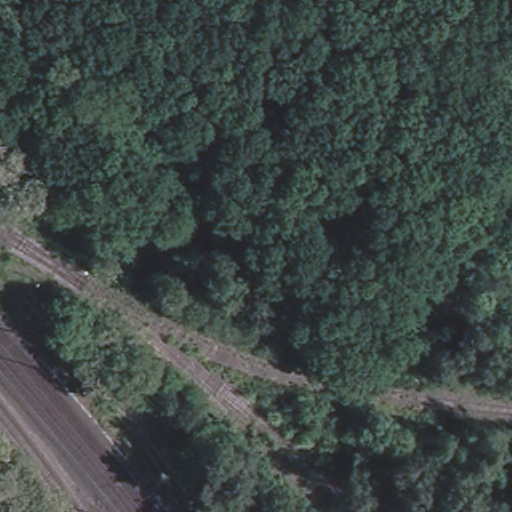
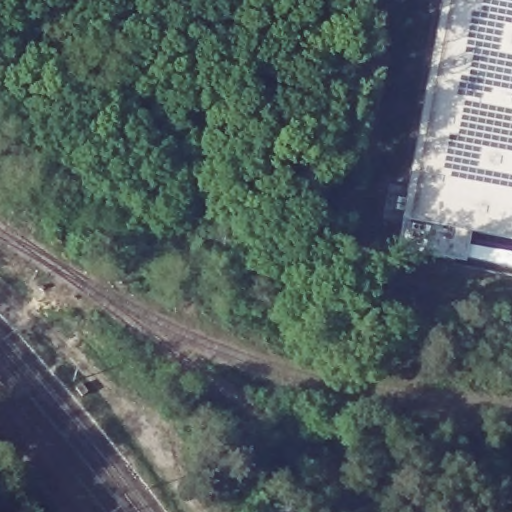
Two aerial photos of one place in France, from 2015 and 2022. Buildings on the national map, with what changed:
new [(471,234),(467,261),(397,247),(401,219),(407,220),(444,0),(512,0),(512,241),(471,234)]

